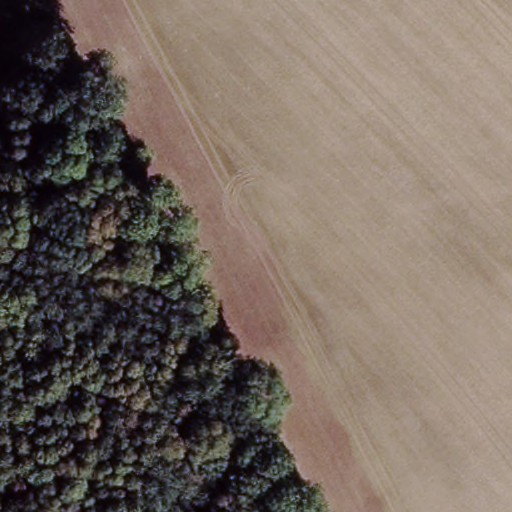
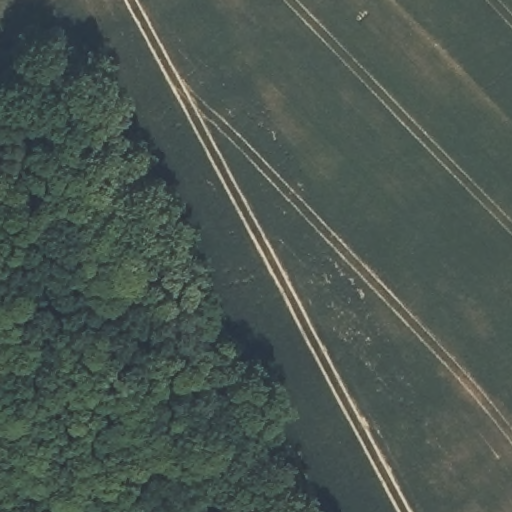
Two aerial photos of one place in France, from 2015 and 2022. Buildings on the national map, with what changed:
[]

